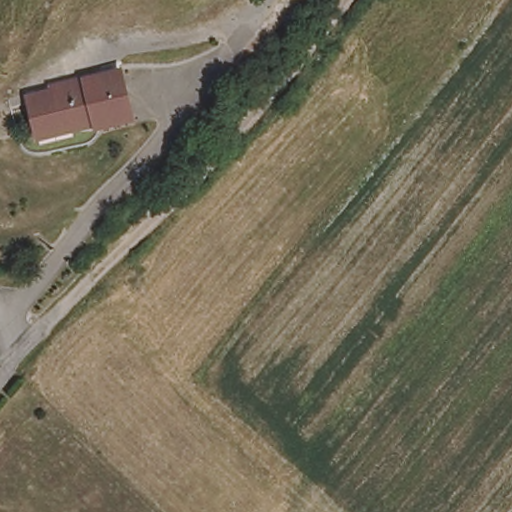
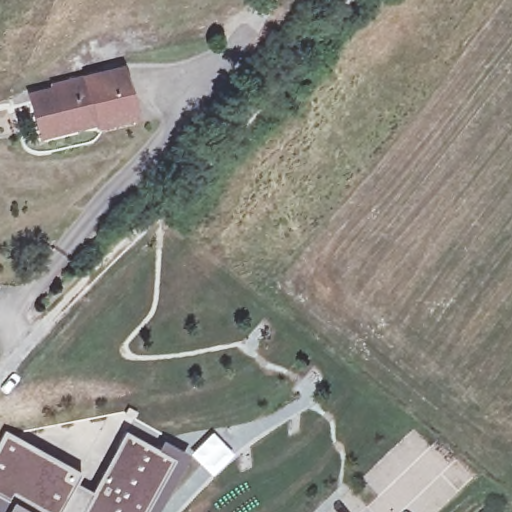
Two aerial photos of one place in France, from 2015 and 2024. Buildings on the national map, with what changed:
unchanged [(37,126),(30,95),(55,88),(54,85),(122,68),(133,116),(97,125),(96,121),(72,127),(40,136),(37,126)]
new [(12,503),(0,496),(0,440),(5,431),(82,474),(76,485),(92,494),(126,432),(176,459),(148,512),(7,512),(12,503)]
new [(176,459),(160,450),(165,441),(190,455),(158,512),(148,512),(176,459)]
new [(0,496),(12,503),(7,512),(0,512),(0,496)]

